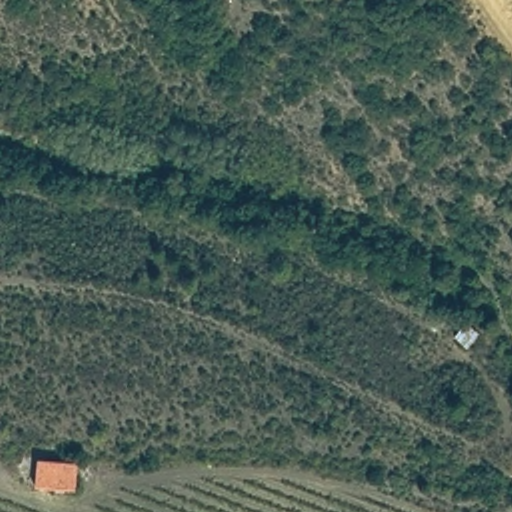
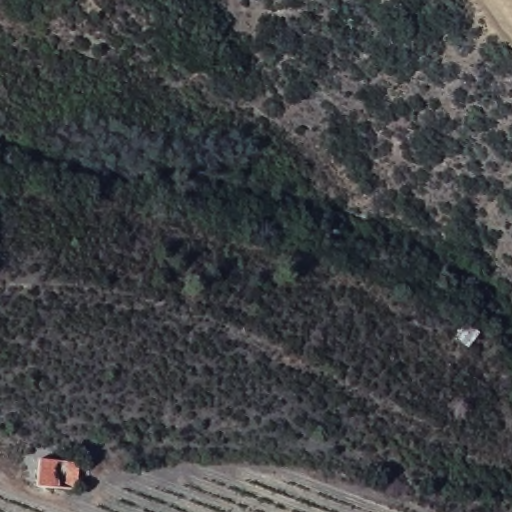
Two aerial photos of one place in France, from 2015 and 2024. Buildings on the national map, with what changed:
unchanged [(469,315),(482,327),(469,342),(455,333),(469,315)]
unchanged [(33,458),(75,462),(75,490),(30,485),(33,458)]

